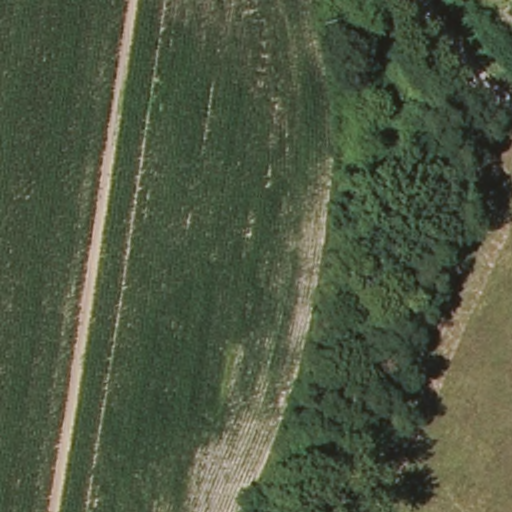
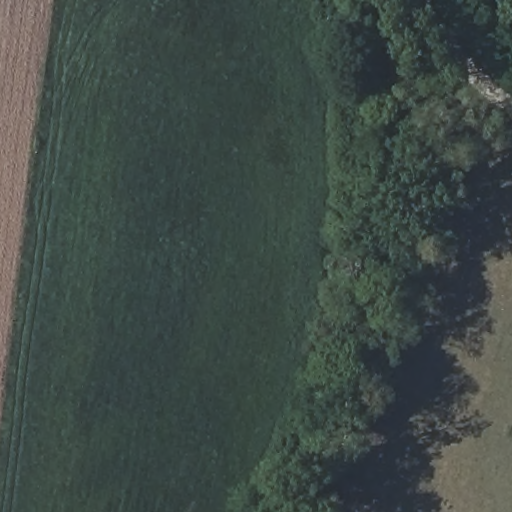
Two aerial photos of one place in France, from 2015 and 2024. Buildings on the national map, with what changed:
[]

